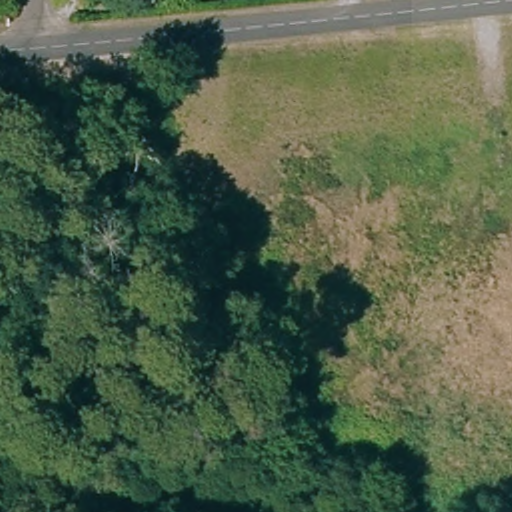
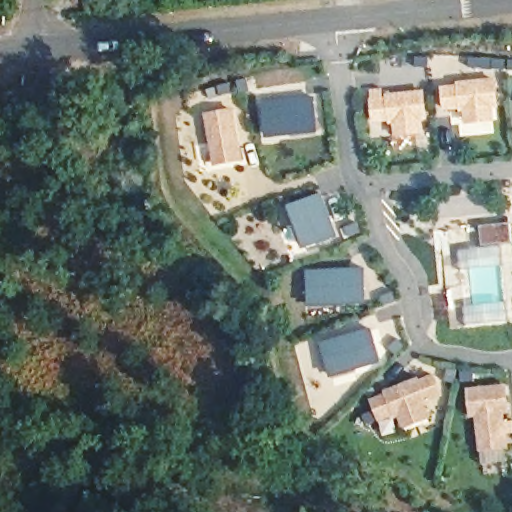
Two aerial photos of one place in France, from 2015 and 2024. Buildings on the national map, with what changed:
new [(461,107),(446,109),(443,85),(460,84),(459,79),(497,76),(502,107),(496,107),(497,121),(467,124),(466,111),(462,111),(461,107)]
new [(427,89),(430,119),(424,119),(425,133),(396,136),(395,124),(391,124),(391,120),(373,122),(372,97),(371,89),(383,87),(383,97),(388,96),(388,92),(427,89)]
new [(267,137),(265,101),(317,96),(320,132),(267,137)]
new [(206,112),(235,107),(245,160),(215,165),(206,112)]
new [(341,235),(306,247),(290,204),(324,192),(341,235)]
new [(482,224),(512,222),(512,244),(483,246),(482,224)]
new [(368,303),(310,305),(309,270),(367,267),(368,303)]
new [(383,362),(331,376),(322,341),(373,327),(383,362)]
new [(395,415),(380,421),(371,398),(386,392),(386,388),(421,374),(422,378),(437,372),(447,397),(428,405),(433,417),(406,427),(401,416),(397,417),(395,415)]
new [(481,450),(477,417),(471,417),(468,387),(508,382),(511,412),(508,413),(508,421),(512,420),(512,432),(510,432),(510,447),(481,450)]

